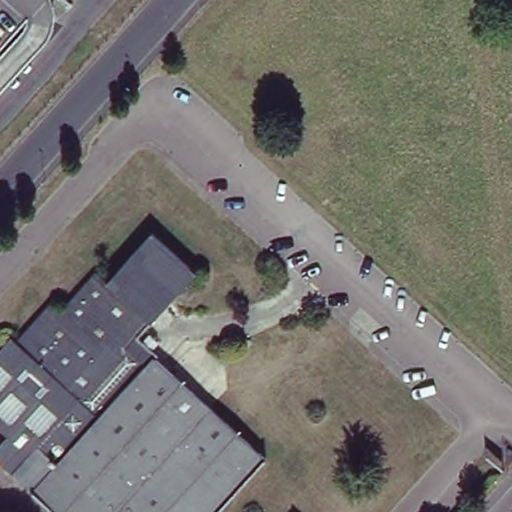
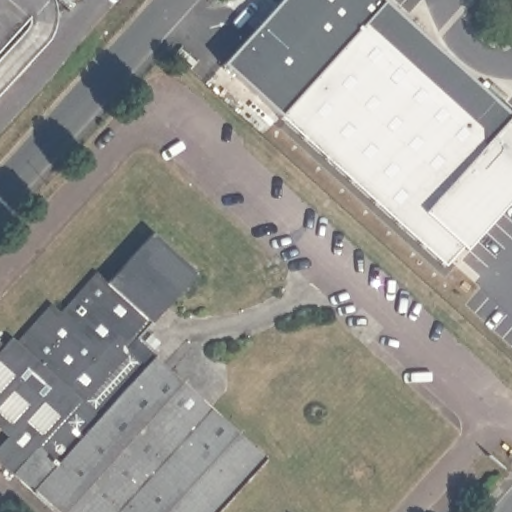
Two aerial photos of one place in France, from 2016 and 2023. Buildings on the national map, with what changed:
unchanged [(45,0),(0,49),(0,0),(45,0)]
new [(381,0),(512,115),(512,198),(467,249),(463,246),(443,264),(224,63),(282,0),(381,0)]
unchanged [(0,458),(0,440),(7,431),(0,424),(0,339),(3,342),(10,334),(15,338),(51,299),(60,308),(96,268),(107,278),(151,228),(195,268),(137,332),(143,338),(150,329),(158,337),(151,344),(156,350),(154,353),(265,454),(213,512),(60,512),(0,458)]

